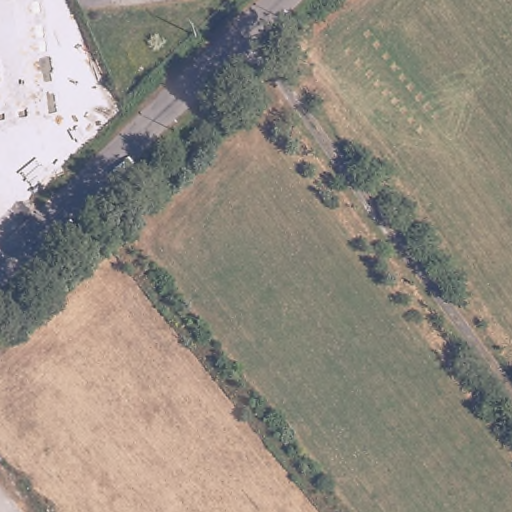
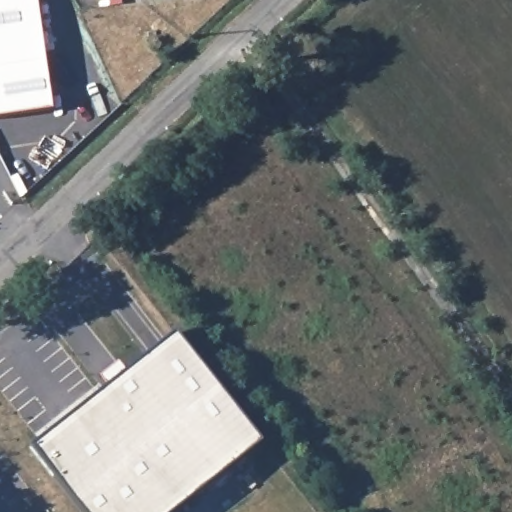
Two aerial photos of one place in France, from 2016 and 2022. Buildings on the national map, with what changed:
unchanged [(0,118),(0,0),(36,0),(52,110),(0,118)]
new [(177,333),(264,443),(174,512),(84,512),(33,448),(177,333)]

